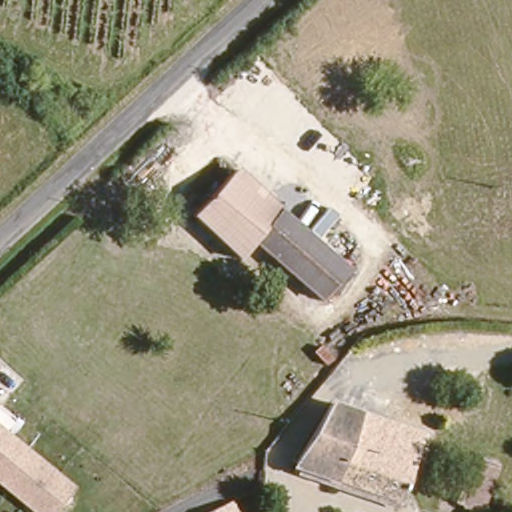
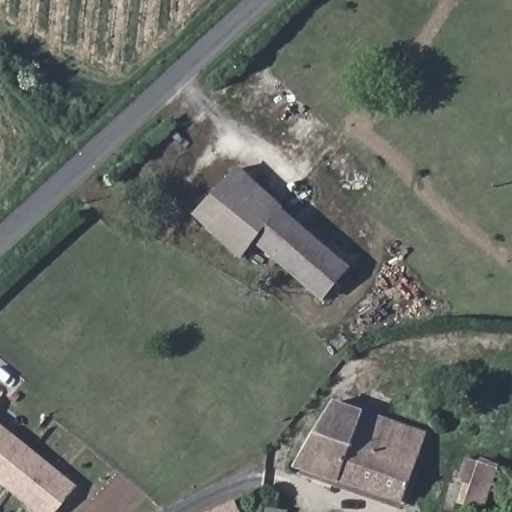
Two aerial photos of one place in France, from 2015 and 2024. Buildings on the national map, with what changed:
unchanged [(351,273),(323,305),(256,245),(242,261),(192,216),(234,168),(351,273)]
unchanged [(331,402),(390,422),(393,418),(426,429),(399,500),(293,467),(331,402)]
unchanged [(55,512),(33,512),(0,483),(0,427),(73,491),(55,512)]
unchanged [(474,459),(500,466),(484,512),(478,512),(458,505),(474,459)]
unchanged [(278,498),(278,512),(268,512),(268,498),(278,498)]
unchanged [(235,501),(241,512),(212,512),(235,501)]

